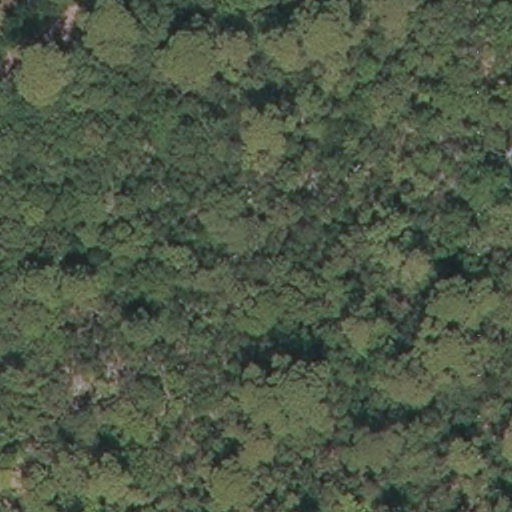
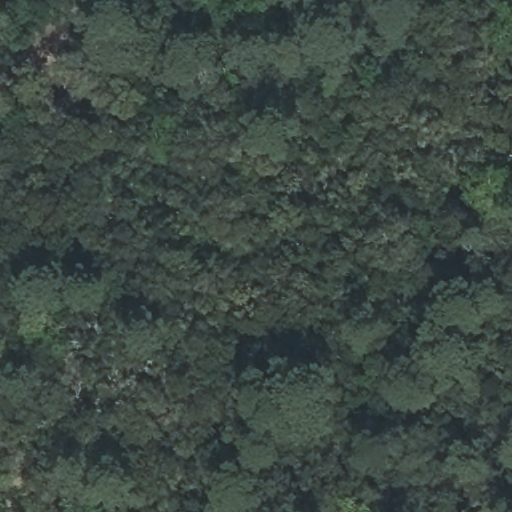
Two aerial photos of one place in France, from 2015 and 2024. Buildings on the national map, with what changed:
[]

